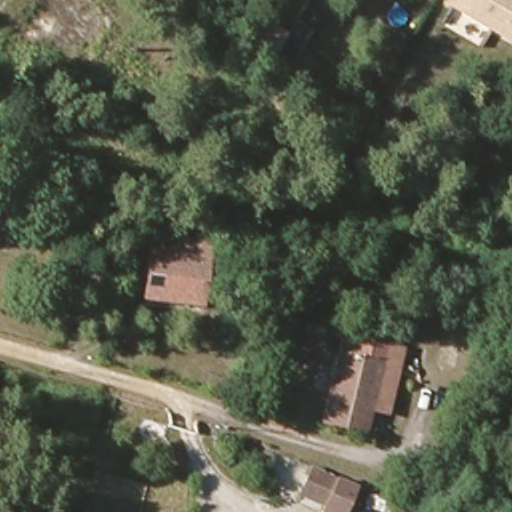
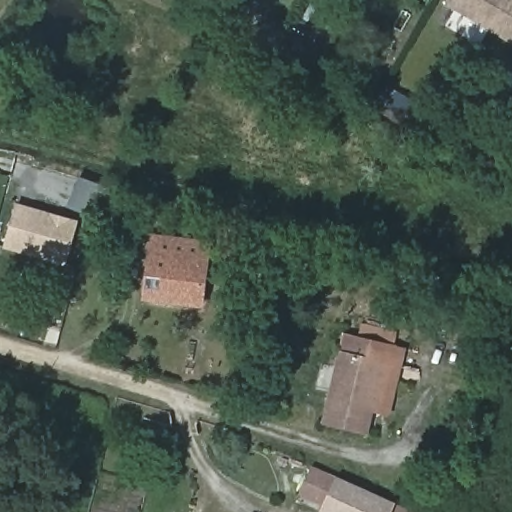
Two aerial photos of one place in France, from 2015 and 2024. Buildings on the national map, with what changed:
unchanged [(447,5),(450,0),(512,0),(512,43),(447,5)]
unchanged [(289,34),(270,66),(244,51),(262,19),(289,34)]
new [(80,222),(69,267),(5,251),(17,206),(80,222)]
unchanged [(200,309),(140,301),(149,233),(210,241),(200,309)]
unchanged [(325,421),(345,355),(355,356),(358,337),(405,348),(400,369),(383,366),(366,431),(325,421)]
unchanged [(313,466),(360,488),(351,512),(329,512),(301,500),(313,466)]

